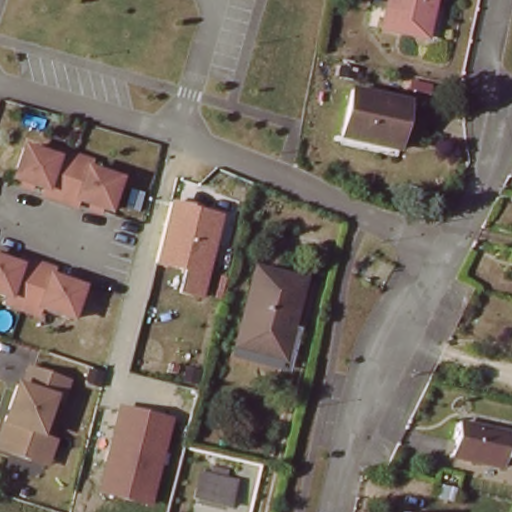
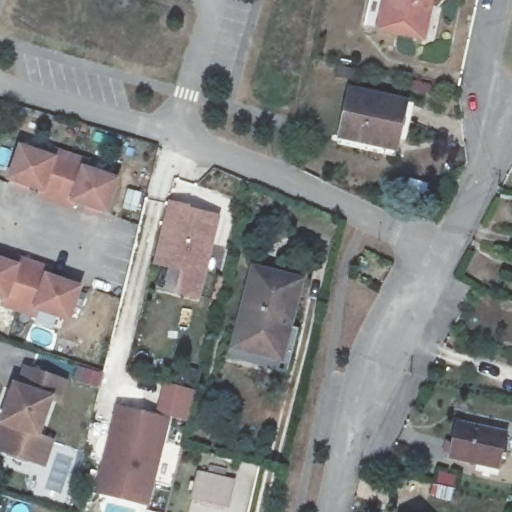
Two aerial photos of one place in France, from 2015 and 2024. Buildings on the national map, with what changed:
unchanged [(378,30),(385,0),(431,0),(423,39),(378,30)]
unchanged [(406,105),(397,149),(340,137),(350,94),(406,105)]
unchanged [(60,166),(62,159),(78,164),(63,209),(46,204),(49,197),(18,186),(28,155),(60,166)]
unchanged [(85,167),(95,170),(92,177),(123,188),(113,219),(81,208),(79,215),(74,214),(63,209),(78,164),(85,167)]
unchanged [(187,204),(191,209),(218,215),(200,298),(176,293),(180,272),(153,266),(171,200),(187,204)]
unchanged [(9,302),(11,295),(0,291),(0,256),(22,264),(25,257),(41,263),(25,308),(9,302)]
unchanged [(57,268),(55,275),(56,276),(86,286),(75,317),(49,308),(44,306),(41,313),(25,308),(41,263),(57,268)]
unchanged [(295,280),(288,328),(298,328),(293,364),(234,356),(246,273),(295,280)]
unchanged [(52,465),(38,461),(13,453),(1,449),(11,418),(14,410),(21,387),(26,388),(31,369),(33,369),(71,382),(65,401),(57,399),(45,437),(60,441),(52,465)]
unchanged [(171,419),(148,507),(95,491),(115,406),(171,419)]
unchanged [(507,434),(500,467),(449,455),(456,423),(507,434)]
unchanged [(236,486),(230,511),(195,503),(201,478),(236,486)]

